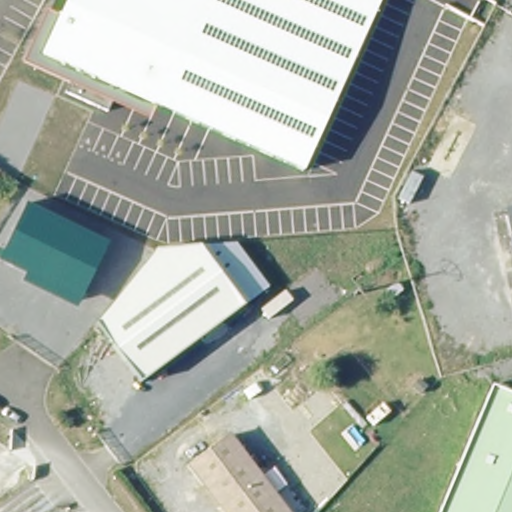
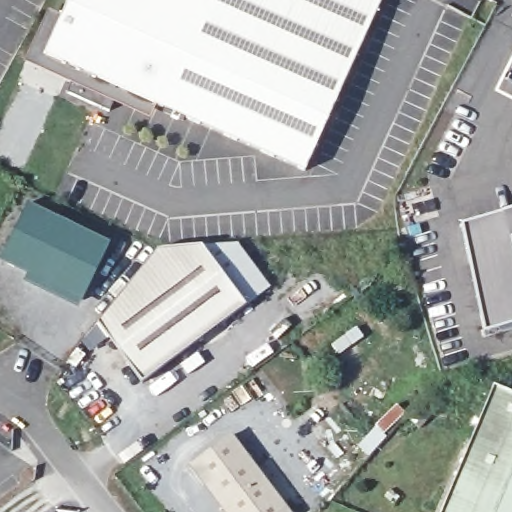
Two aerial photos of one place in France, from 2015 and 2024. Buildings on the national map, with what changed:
unchanged [(305,174),(40,52),(66,0),(383,0),(305,174)]
unchanged [(107,249),(78,305),(0,264),(0,259),(28,204),(78,229),(109,245),(107,249)]
unchanged [(512,210),(512,235),(506,211),(512,210)]
new [(462,224),(506,211),(512,235),(512,322),(484,331),(462,224)]
unchanged [(163,246),(206,242),(250,301),(208,332),(145,378),(98,317),(134,278),(163,246)]
unchanged [(512,395),(512,512),(443,512),(495,388),(512,395)]
unchanged [(227,512),(193,464),(234,435),(288,512),(227,512)]

